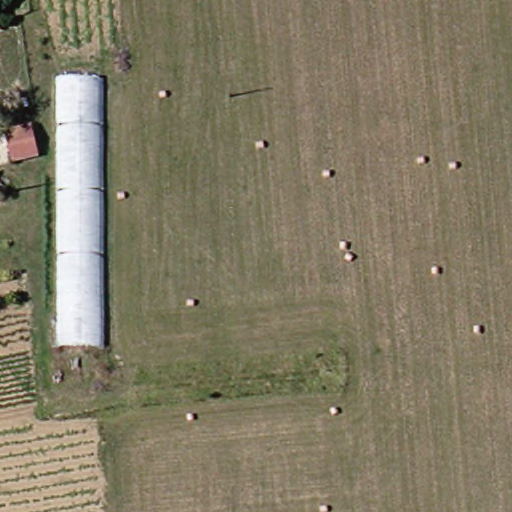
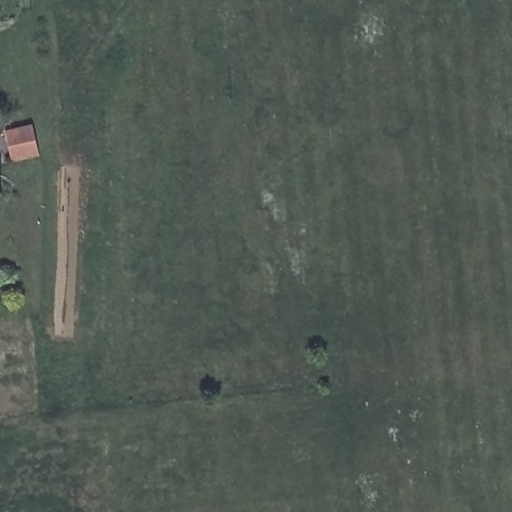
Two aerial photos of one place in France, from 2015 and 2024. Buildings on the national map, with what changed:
unchanged [(2,23),(0,24),(0,20),(2,23)]
demolished [(103,75),(105,357),(61,356),(59,76),(103,75)]
unchanged [(32,123),(40,157),(14,163),(6,128),(32,123)]

